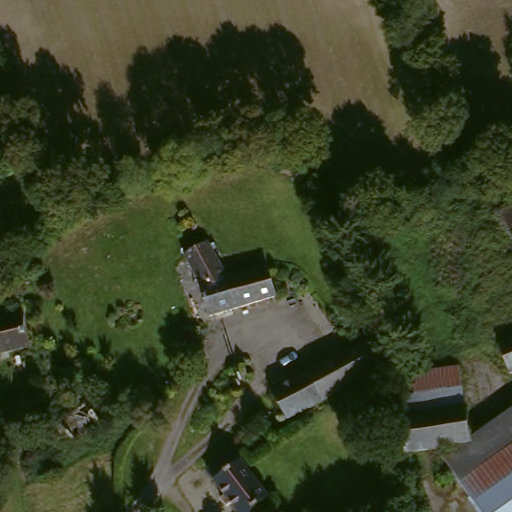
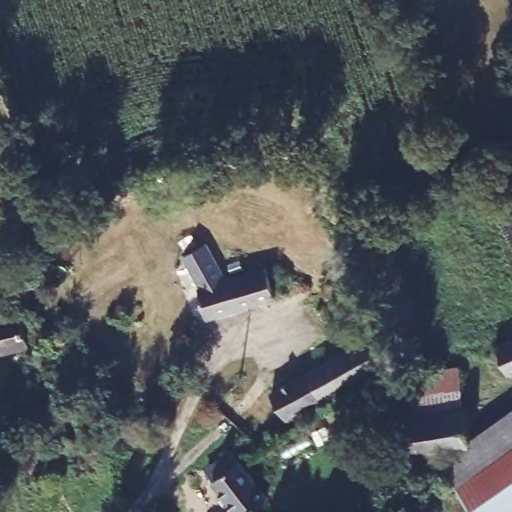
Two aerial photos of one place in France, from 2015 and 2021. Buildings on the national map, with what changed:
unchanged [(512,211),(512,250),(496,219),(512,211)]
unchanged [(202,250),(210,247),(225,283),(265,272),(269,292),(272,301),(208,317),(202,294),(186,257),(202,250)]
unchanged [(4,332),(22,328),(25,340),(29,358),(20,360),(0,363),(0,332),(4,332)]
unchanged [(497,348),(512,343),(512,379),(507,381),(497,348)]
unchanged [(281,424),(268,397),(365,349),(378,376),(281,424)]
unchanged [(400,398),(417,397),(415,375),(462,374),(464,416),(401,420),(400,398)]
unchanged [(101,418),(64,446),(48,426),(85,398),(101,418)]
unchanged [(512,512),(476,512),(440,461),(456,450),(466,449),(465,443),(512,411),(512,512)]
unchanged [(464,416),(465,443),(466,449),(456,450),(402,453),(401,420),(464,416)]
unchanged [(208,482),(213,477),(235,464),(267,511),(266,512),(223,512),(221,510),(225,507),(208,482)]

